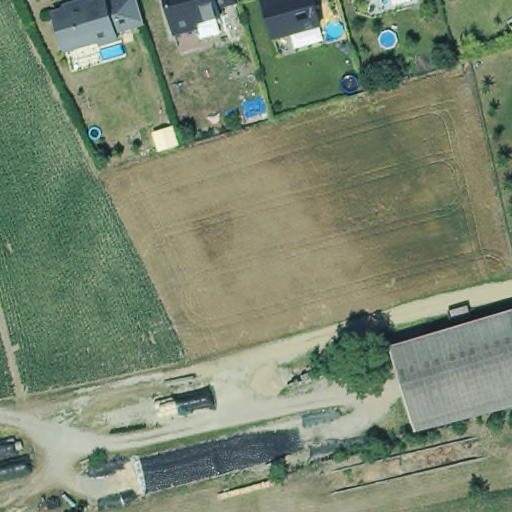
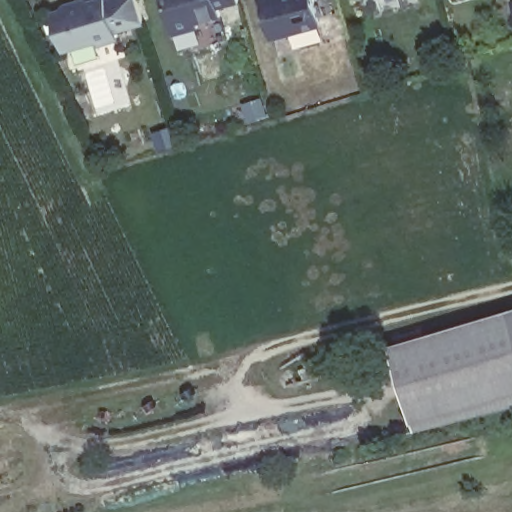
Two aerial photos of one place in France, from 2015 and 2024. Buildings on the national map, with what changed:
unchanged [(56,11),(97,0),(137,0),(143,24),(117,33),(120,40),(100,45),(99,39),(62,51),(56,11)]
unchanged [(238,2),(220,8),(221,15),(197,22),(198,29),(174,34),(166,0),(238,0),(238,2)]
unchanged [(260,0),(313,0),(321,23),(271,38),(260,0)]
unchanged [(393,345),(512,310),(512,407),(433,428),(419,431),(393,345)]

